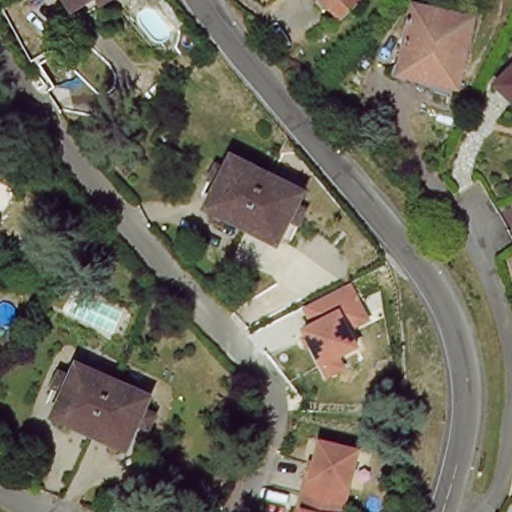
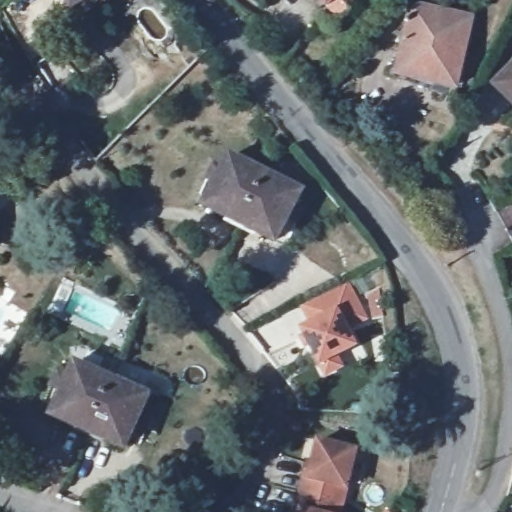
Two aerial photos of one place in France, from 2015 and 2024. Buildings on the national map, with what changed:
unchanged [(71,0),(87,0),(76,7),(71,0)]
unchanged [(99,0),(106,0),(101,3),(99,0)]
unchanged [(333,0),(370,0),(350,18),(333,0)]
unchanged [(399,73),(415,5),(473,19),(457,87),(399,73)]
unchanged [(512,67),(512,99),(496,83),(512,67)]
unchanged [(241,225),(222,215),(224,212),(207,203),(217,182),(209,178),(216,163),(225,168),(231,155),(267,173),(241,225)]
unchanged [(303,190),(296,203),(305,208),(298,222),(289,218),(279,239),(262,231),(260,234),(241,225),(267,173),(303,190)]
unchanged [(2,219),(0,227),(0,219),(2,219)]
unchanged [(311,348),(307,350),(303,342),(307,340),(304,333),(313,329),(304,312),(304,311),(348,288),(349,289),(358,306),(367,323),(354,330),(348,333),(356,350),(337,360),(343,371),(327,379),(322,368),(311,348)]
unchanged [(113,379),(89,432),(70,424),(72,420),(54,412),(64,391),(52,386),(59,371),(70,376),(76,363),(113,379)]
unchanged [(149,395),(143,408),(155,413),(148,428),(137,423),(127,445),(110,437),(108,441),(89,432),(113,379),(149,395)]
unchanged [(297,509),(300,499),(306,476),(309,461),(314,462),(319,440),(357,449),(341,512),(296,512),(297,509)]

